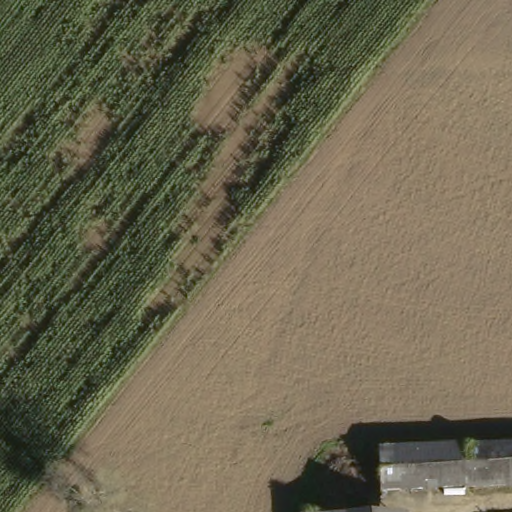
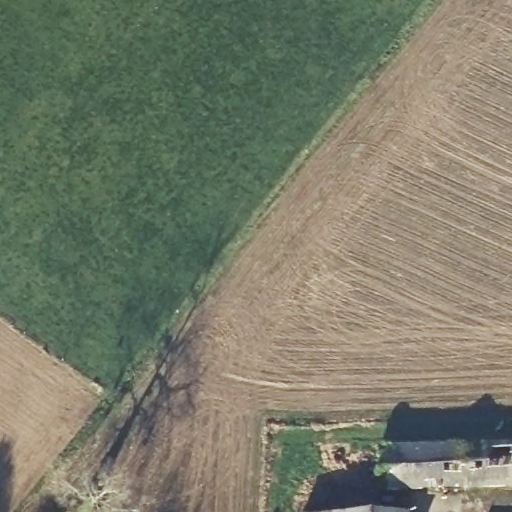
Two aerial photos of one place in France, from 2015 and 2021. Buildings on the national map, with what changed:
unchanged [(512,493),(383,499),(381,454),(512,447),(512,493)]

